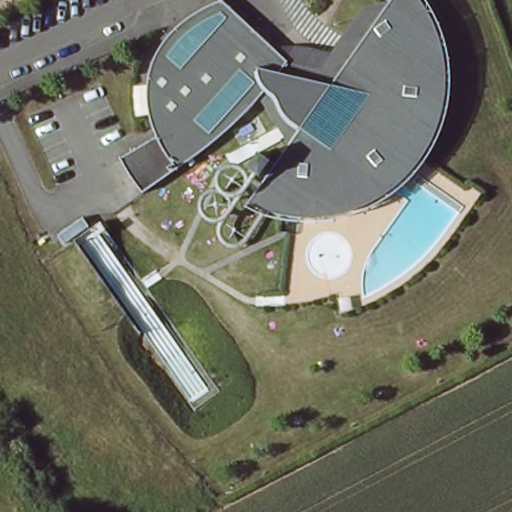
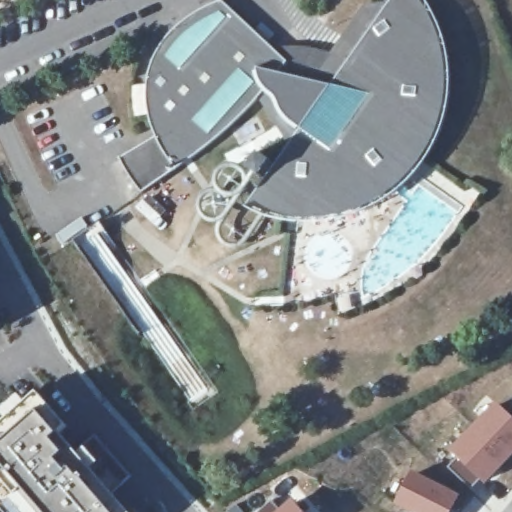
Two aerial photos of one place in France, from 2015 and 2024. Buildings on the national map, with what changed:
unchanged [(235,41),(250,54),(263,39),(281,56),(334,69),(354,39),(341,31),(360,0),(417,0),(420,4),(429,21),(435,40),(439,60),(440,80),(438,100),(433,119),(427,133),(418,150),(406,166),(392,180),(380,189),(358,201),(344,206),(325,211),(305,213),(285,212),(261,206),(243,199),(266,165),(263,163),(259,169),(247,161),(255,148),(270,159),(282,144),(252,94),(236,111),(218,128),(196,146),(164,169),(134,187),(116,152),(149,132),(145,122),(143,107),(143,87),(146,67),(150,58),(156,44),(164,32),(174,21),(185,11),(202,0),(221,0),(249,26),(235,41)]
new [(4,321),(0,323),(0,314),(4,321)]
new [(99,442),(94,449),(151,512),(55,512),(62,504),(41,482),(35,487),(5,452),(0,455),(0,433),(53,391),(99,442)]
new [(512,407),(512,455),(484,485),(480,480),(470,490),(447,469),(457,459),(448,452),(494,401),(507,412),(512,407)]
new [(449,512),(406,512),(393,506),(410,471),(457,495),(449,512)]
new [(257,512),(271,501),(278,509),(290,499),(301,512),(257,512)]

